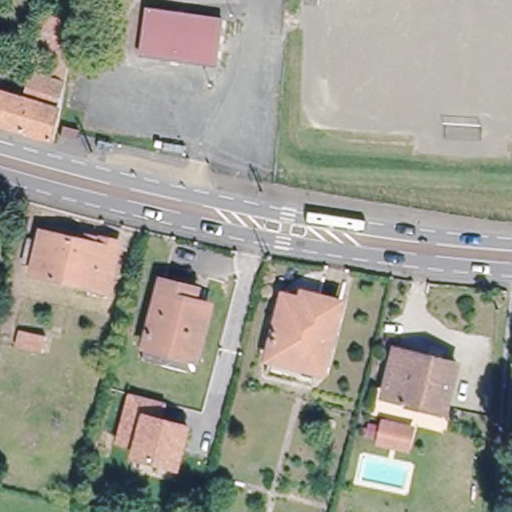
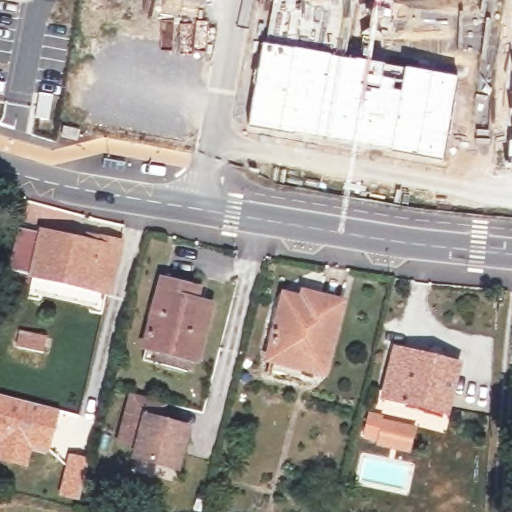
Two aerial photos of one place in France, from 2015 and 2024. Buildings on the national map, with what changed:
new [(444,162),(248,127),(263,45),(266,46),(275,0),(271,0),(357,0),(347,61),(457,79),(444,162)]
demolished [(205,65),(139,55),(147,9),(221,21),(213,66),(205,65)]
demolished [(63,85),(53,141),(0,126),(0,95),(25,102),(34,76),(63,85)]
new [(506,167),(507,142),(512,144),(512,168),(506,167)]
unchanged [(82,242),(84,237),(114,244),(106,273),(95,270),(90,293),(25,278),(37,231),(82,242)]
unchanged [(163,287),(184,292),(198,295),(194,308),(210,312),(198,364),(148,352),(163,287)]
unchanged [(284,301),(304,306),(305,299),(316,302),(338,307),(322,372),(270,360),(284,301)]
new [(14,346),(18,329),(46,336),(43,353),(14,346)]
unchanged [(384,397),(396,348),(457,363),(445,412),(384,397)]
unchanged [(154,397),(160,399),(156,417),(185,424),(177,458),(155,453),(153,460),(131,455),(134,444),(115,439),(128,390),(154,397)]
new [(48,454),(32,450),(27,467),(0,459),(0,394),(60,409),(48,454)]
new [(417,426),(411,452),(367,441),(367,438),(363,437),(369,416),(417,426)]
new [(69,452),(90,458),(80,501),(58,496),(69,452)]

